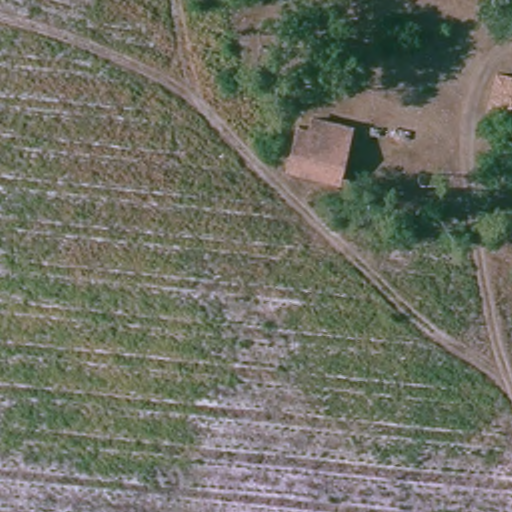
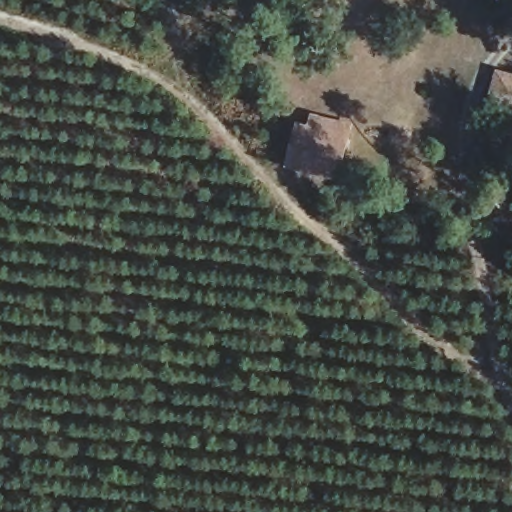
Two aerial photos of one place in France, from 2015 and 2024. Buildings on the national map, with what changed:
unchanged [(497,77),(512,80),(512,116),(488,110),(497,77)]
unchanged [(288,177),(292,131),(324,134),(326,99),(349,100),(346,180),(288,177)]

